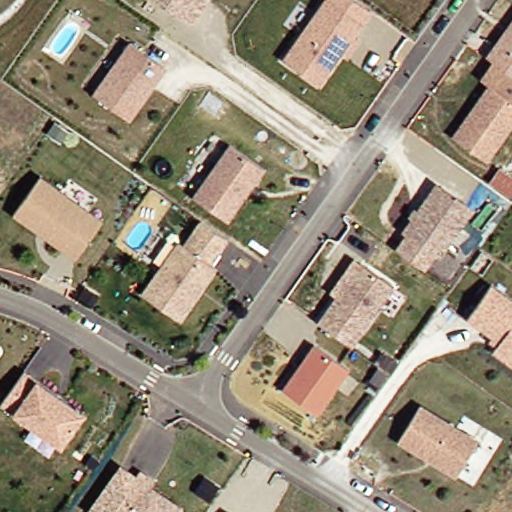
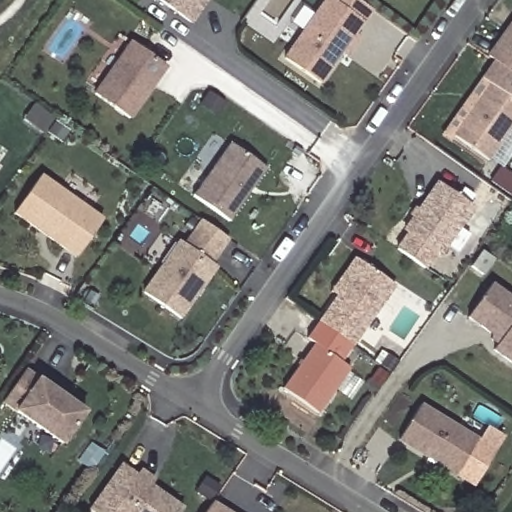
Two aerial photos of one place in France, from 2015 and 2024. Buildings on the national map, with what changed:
unchanged [(194,21),(164,0),(208,0),(205,5),(194,21)]
unchanged [(323,81),(288,57),(327,0),(364,0),(375,7),(366,20),(358,32),(363,35),(350,54),(345,50),(323,81)]
unchanged [(499,67),(493,63),(487,59),(512,24),(512,77),(499,67)]
unchanged [(168,64),(131,116),(96,91),(134,40),(168,64)]
unchanged [(481,81),(493,63),(499,67),(512,77),(512,128),(487,163),(452,139),(489,86),(481,81)]
unchanged [(234,142),(269,167),(232,219),(197,195),(234,142)]
unchanged [(17,212),(44,175),(106,218),(79,256),(51,236),(43,231),(17,212)]
unchanged [(442,182),(477,206),(444,252),(440,250),(428,267),(401,247),(413,231),(409,228),(442,182)]
unchanged [(184,317),(147,292),(183,240),(189,244),(206,220),(209,222),(232,237),(215,262),(220,266),(206,286),(202,292),(184,317)]
unchanged [(365,261),(398,285),(356,345),(322,321),(365,261)]
unchanged [(498,333),(473,316),(496,282),(512,294),(512,359),(498,348),(502,342),(495,337),(498,333)]
unchanged [(354,368),(322,413),(287,388),(319,343),(354,368)]
unchanged [(20,380),(27,370),(86,412),(64,443),(5,401),(20,380)]
unchanged [(424,404),(482,439),(462,473),(403,438),(424,404)]
unchanged [(184,512),(95,512),(94,511),(126,466),(140,476),(144,471),(158,481),(155,486),(187,508),(184,512)]

